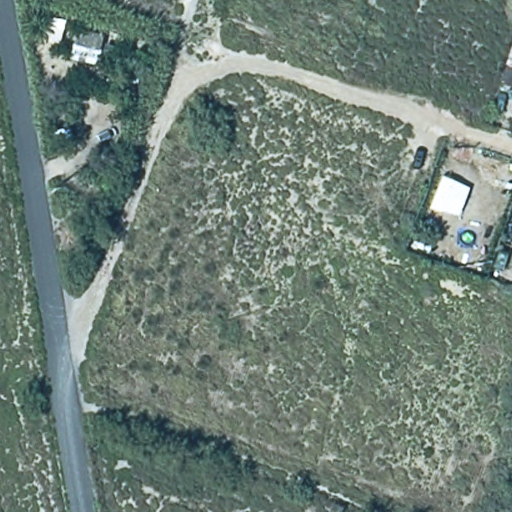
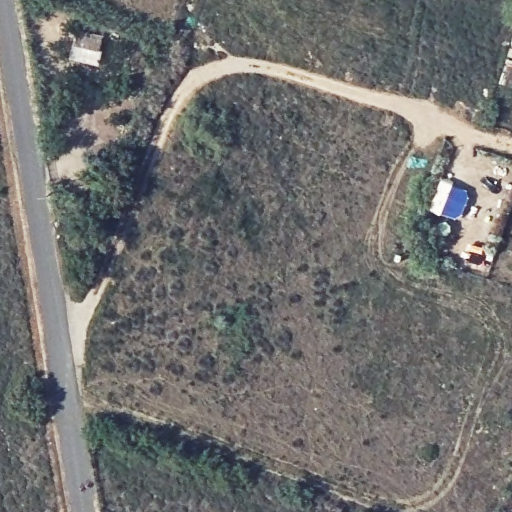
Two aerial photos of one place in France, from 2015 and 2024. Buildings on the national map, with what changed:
unchanged [(75,28),(105,34),(100,60),(67,54),(75,28)]

